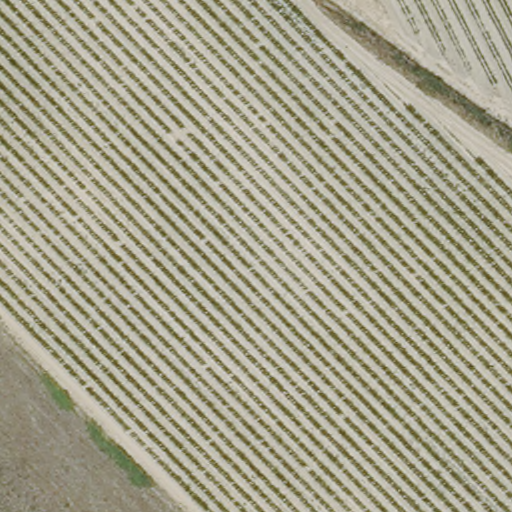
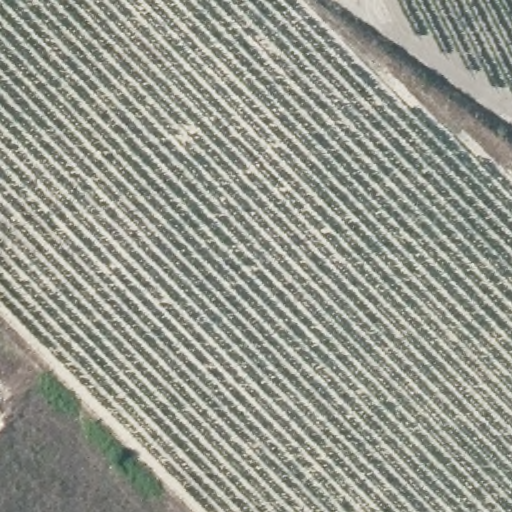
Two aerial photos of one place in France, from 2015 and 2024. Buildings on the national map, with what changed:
[]

